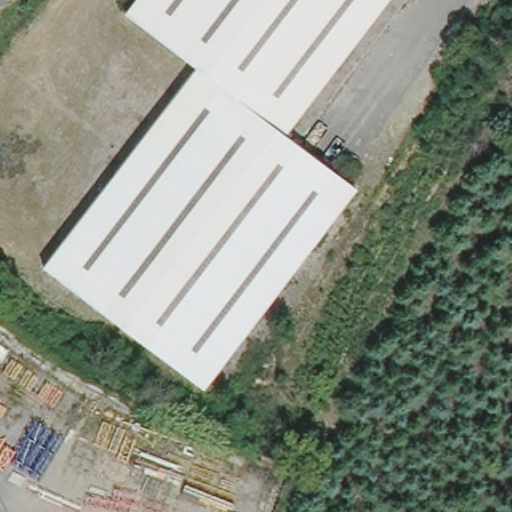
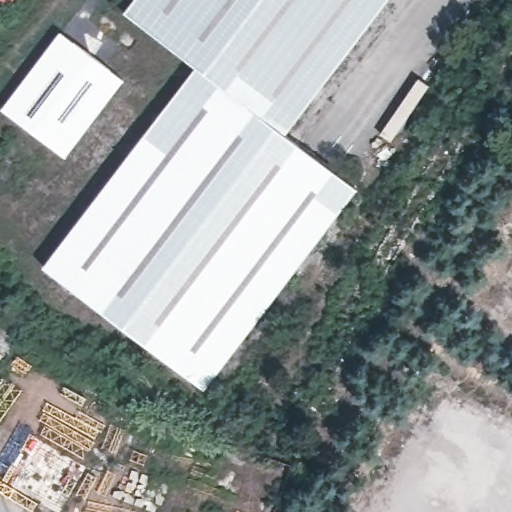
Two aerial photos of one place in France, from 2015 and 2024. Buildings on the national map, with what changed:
unchanged [(285,135),(356,190),(204,389),(44,266),(196,66),(125,11),(134,0),(388,0),(321,88),(285,135)]
new [(60,30),(126,81),(65,159),(0,109),(60,30)]

